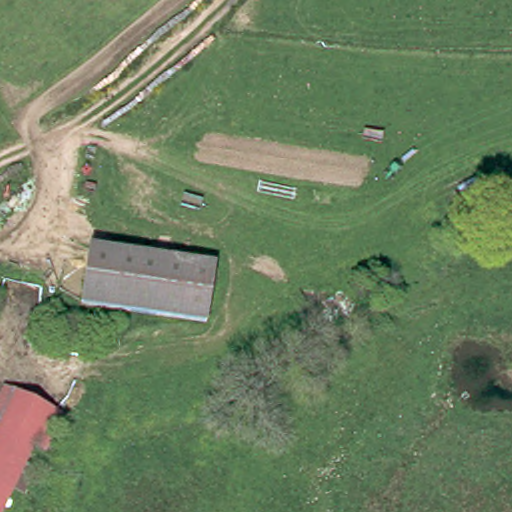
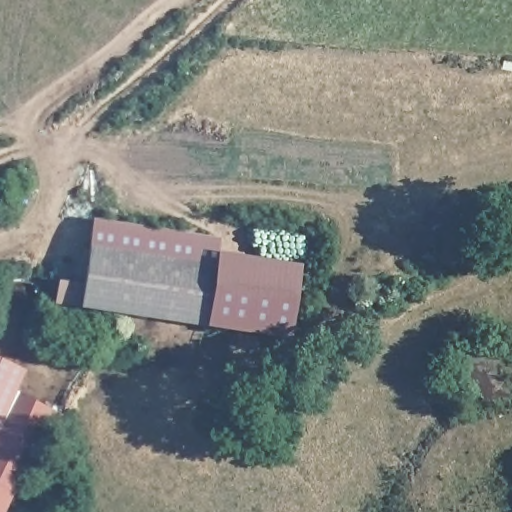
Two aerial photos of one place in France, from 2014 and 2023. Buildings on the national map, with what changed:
new [(92,217),(219,235),(217,250),(301,263),(290,339),(203,325),(204,320),(212,262),(87,244),(92,217)]
unchanged [(212,262),(204,320),(78,303),(87,244),(212,262)]
new [(26,369),(10,398),(0,420),(0,357),(26,369)]
unchanged [(44,413),(0,505),(0,420),(10,398),(44,413)]

